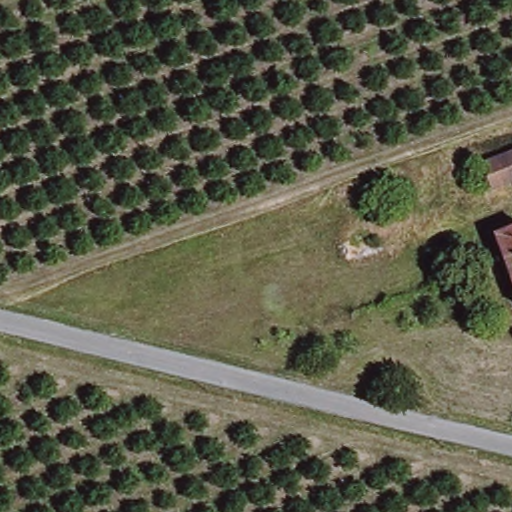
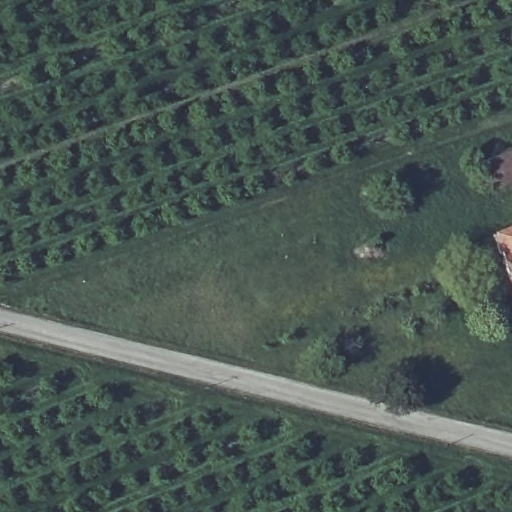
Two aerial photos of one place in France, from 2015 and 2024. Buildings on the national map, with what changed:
unchanged [(483,190),(475,162),(512,149),(512,181),(483,190)]
unchanged [(497,234),(512,229),(512,280),(497,234)]

